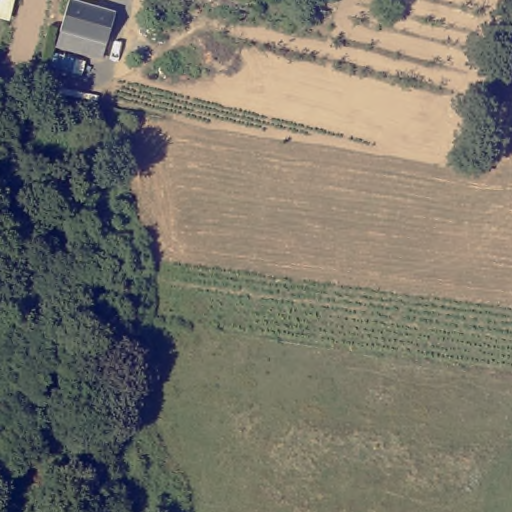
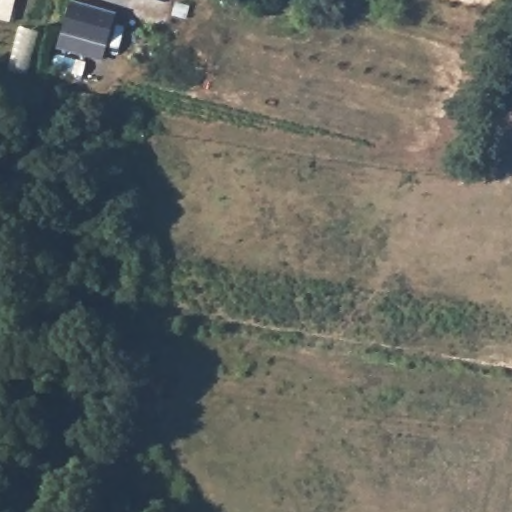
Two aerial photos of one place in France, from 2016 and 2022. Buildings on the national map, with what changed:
unchanged [(72,1),(119,14),(110,44),(62,32),(72,1)]

